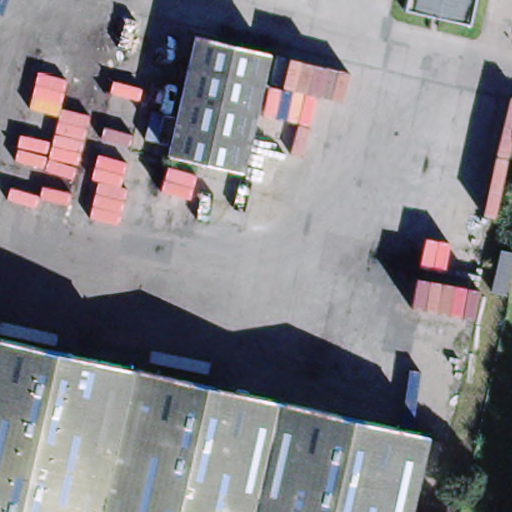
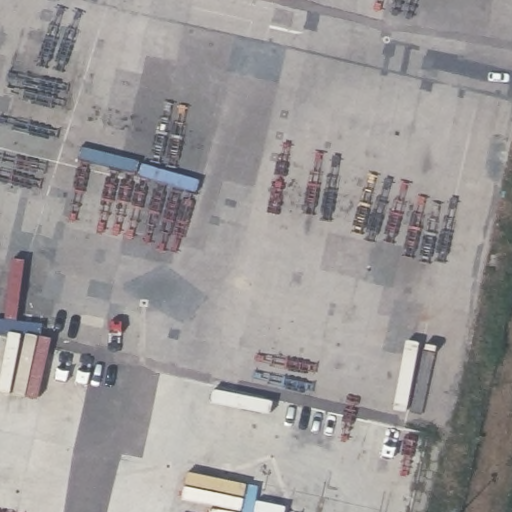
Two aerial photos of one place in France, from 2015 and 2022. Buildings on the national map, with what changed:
unchanged [(470,25),(406,10),(408,0),(476,0),(470,25)]
unchanged [(199,39),(270,55),(245,172),(171,156),(199,39)]
demolished [(512,254),(512,280),(508,297),(495,294),(505,252),(512,254)]
demolished [(131,364),(99,512),(0,512),(0,334),(131,364)]
demolished [(428,432),(410,512),(99,512),(131,364),(428,432)]

